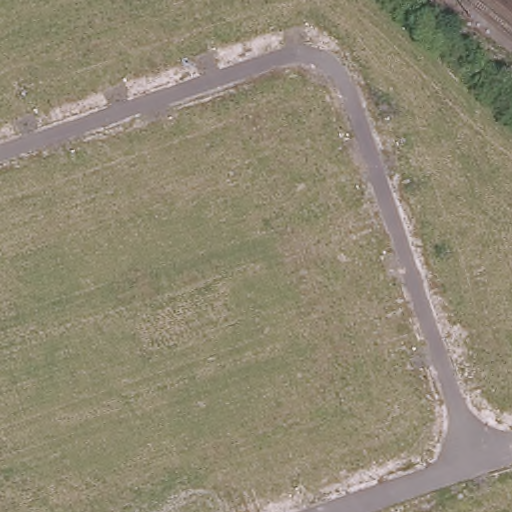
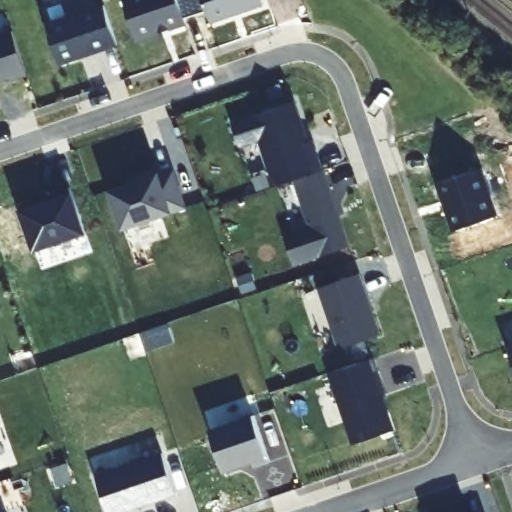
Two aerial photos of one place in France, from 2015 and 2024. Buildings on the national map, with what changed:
new [(125,0),(203,0),(206,11),(186,18),(188,25),(138,41),(125,0)]
new [(203,0),(261,0),(262,4),(210,22),(203,0)]
new [(117,44),(59,64),(46,24),(103,4),(117,44)]
new [(28,75),(0,84),(0,33),(12,30),(28,75)]
new [(315,149),(322,170),(291,180),(274,186),(258,140),(238,146),(231,122),(293,101),(310,151),(307,142),(311,140),(315,149)]
new [(499,215),(454,229),(437,185),(484,168),(499,215)]
new [(323,169),(349,246),(294,265),(283,234),(309,225),(293,180),(322,170),(323,169)]
new [(127,183),(143,178),(158,173),(158,175),(173,171),(186,207),(123,228),(109,189),(127,183)]
new [(19,210),(73,191),(88,235),(36,252),(33,245),(19,210)]
new [(359,273),(379,334),(339,348),(318,288),(359,273)]
new [(512,363),(507,347),(512,345),(512,363)]
new [(374,356),(379,372),(374,373),(393,429),(353,443),(329,372),(374,356)]
new [(114,512),(113,512),(112,512),(109,512),(98,481),(105,478),(103,475),(163,455),(176,494),(124,512),(114,512)]

